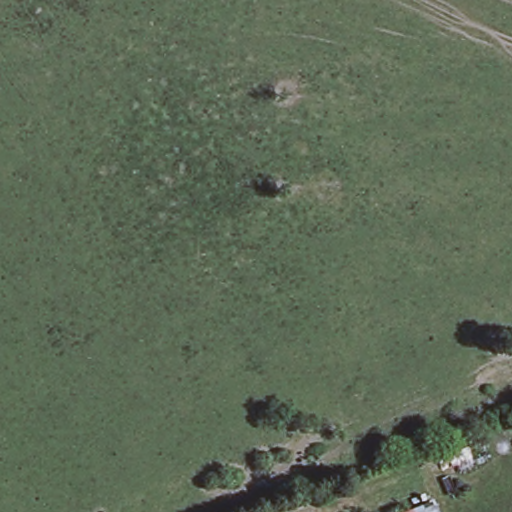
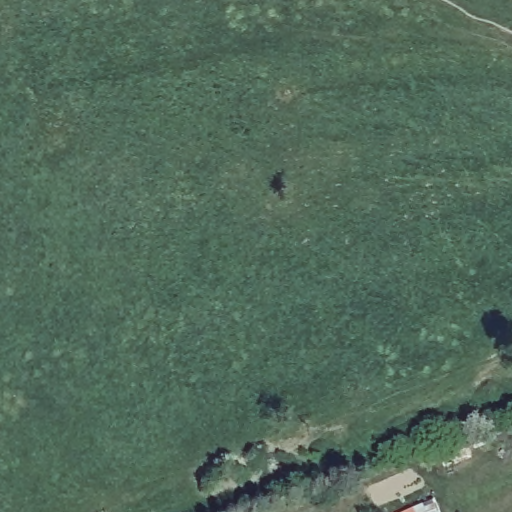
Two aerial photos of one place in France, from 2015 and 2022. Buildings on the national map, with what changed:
unchanged [(425,512),(401,512),(421,502),(425,512)]

